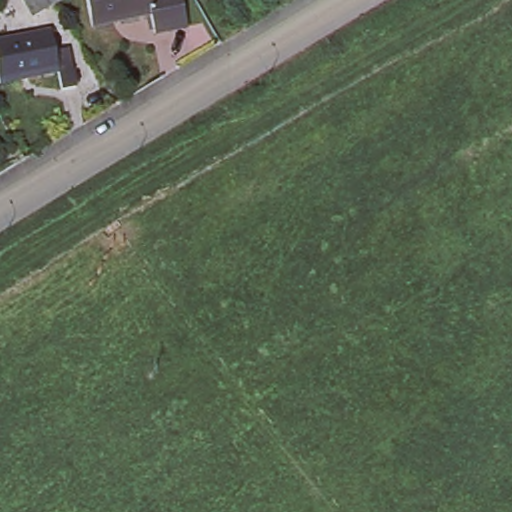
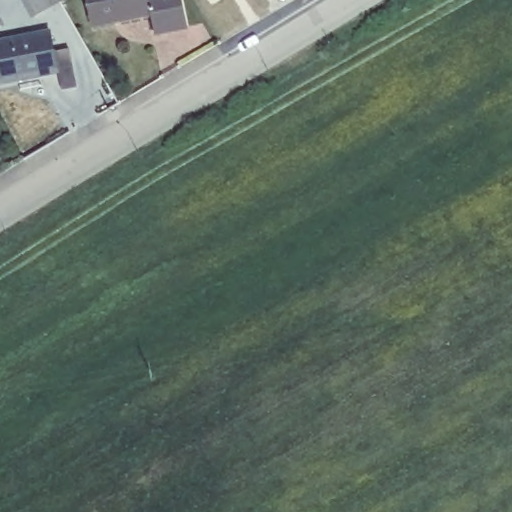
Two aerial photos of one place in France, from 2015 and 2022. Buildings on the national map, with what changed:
unchanged [(34,0),(59,0),(40,11),(34,0)]
unchanged [(156,15),(97,27),(91,0),(184,0),(190,27),(160,33),(156,15)]
unchanged [(73,64),(72,64),(76,83),(61,86),(58,68),(0,79),(0,37),(50,27),(53,46),(69,44),(73,64)]

